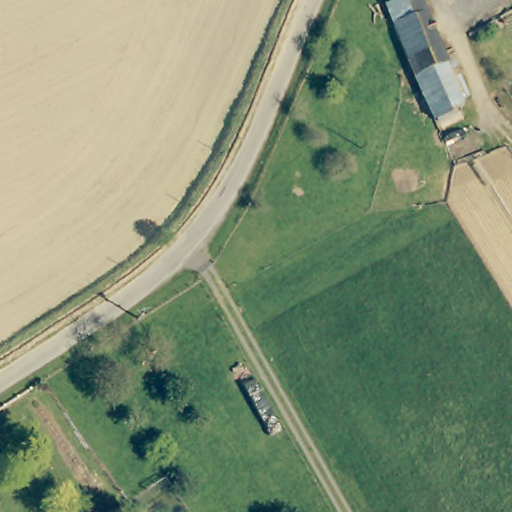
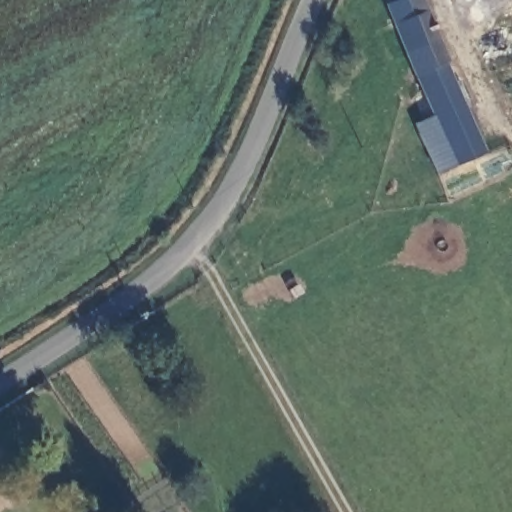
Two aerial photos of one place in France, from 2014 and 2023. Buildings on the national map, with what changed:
unchanged [(448,58),(443,60),(464,106),(434,120),(382,0),(421,0),(448,58)]
new [(485,155),(436,175),(414,125),(432,117),(434,120),(464,106),(485,155)]

